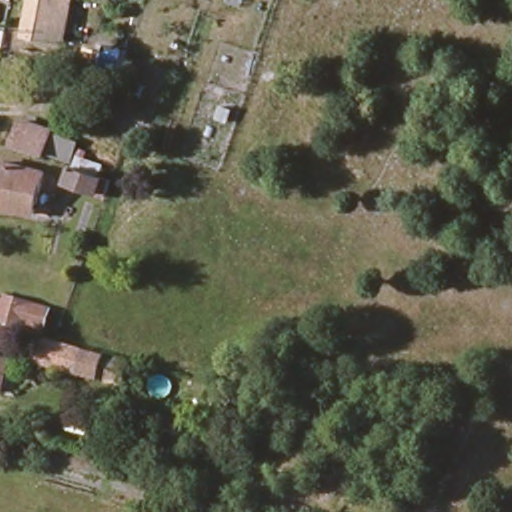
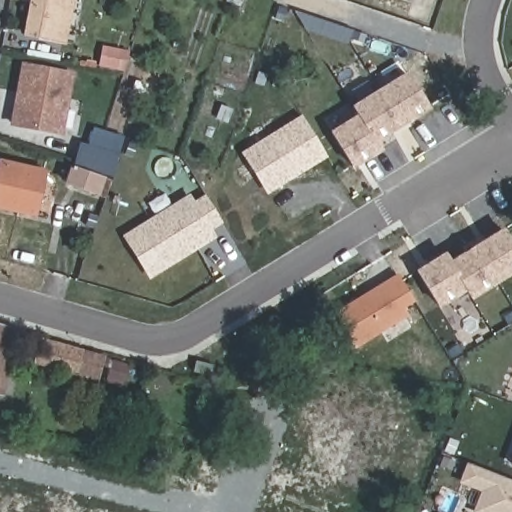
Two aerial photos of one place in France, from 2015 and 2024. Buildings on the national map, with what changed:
unchanged [(63,41),(24,33),(31,0),(70,0),(63,41)]
new [(75,71),(64,135),(10,126),(21,62),(75,71)]
new [(409,77),(429,111),(377,144),(361,118),(356,110),(409,77)]
new [(361,118),(377,144),(382,152),(354,169),(334,135),(361,118)]
new [(305,119),(329,156),(270,192),(247,155),(305,119)]
demolished [(48,156),(47,158),(19,148),(27,124),(55,134),(54,136),(48,156)]
unchanged [(0,208),(0,183),(4,164),(48,174),(38,217),(0,208)]
unchanged [(109,198),(70,185),(76,169),(107,179),(107,180),(114,182),(109,198)]
new [(193,199),(197,206),(210,199),(226,225),(213,232),(216,237),(153,277),(129,238),(193,199)]
new [(507,232),(512,241),(512,275),(474,299),(469,291),(454,265),(507,232)]
new [(448,257),(454,265),(469,291),(442,308),(421,273),(448,257)]
new [(389,343),(383,329),(360,343),(341,313),(369,296),(378,290),(401,276),(415,299),(403,307),(407,314),(414,328),(389,343)]
demolished [(24,328),(0,321),(0,295),(0,293),(31,303),(26,320),(24,328)]
unchanged [(0,326),(12,328),(0,387),(0,326)]
unchanged [(119,387),(95,380),(34,363),(40,344),(100,361),(124,368),(119,387)]
new [(512,481),(512,512),(480,512),(488,492),(466,484),(473,465),(512,481)]

